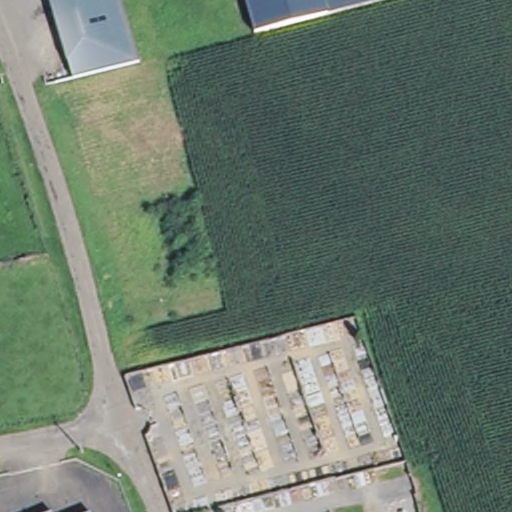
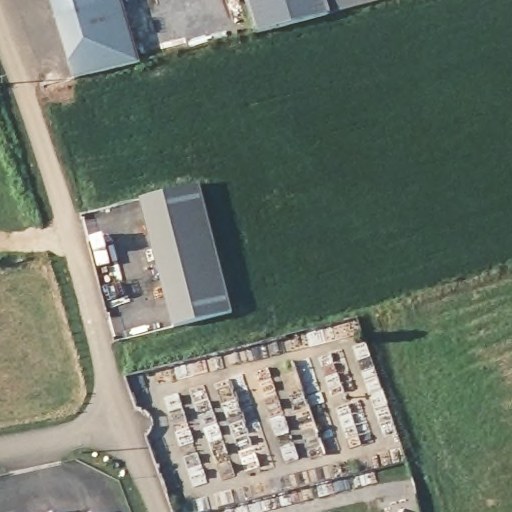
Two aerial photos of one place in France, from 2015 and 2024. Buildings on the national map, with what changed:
unchanged [(138,64),(69,80),(47,0),(120,0),(138,64)]
unchanged [(325,3),(326,10),(254,28),(242,0),(324,0),(325,3)]
unchanged [(327,15),(326,10),(325,3),(324,0),(385,0),(327,15)]
new [(198,185),(232,313),(174,328),(140,200),(198,185)]

